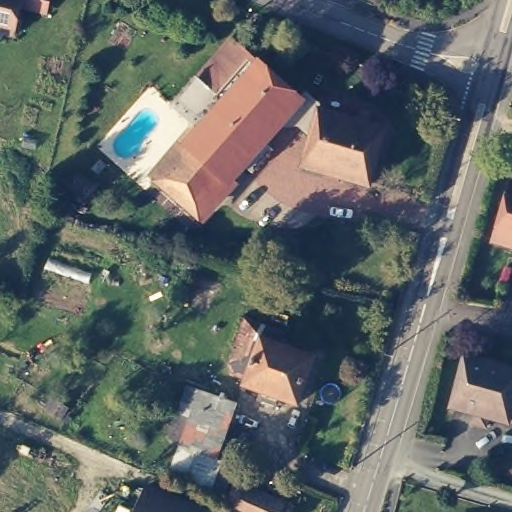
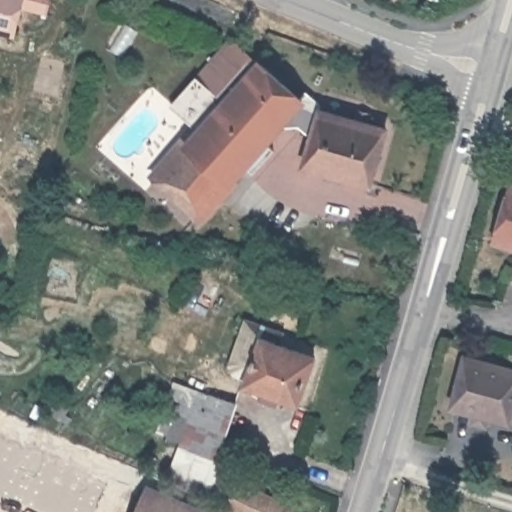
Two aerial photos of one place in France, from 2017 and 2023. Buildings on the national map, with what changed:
unchanged [(16,31),(0,26),(0,0),(24,0),(16,31)]
unchanged [(180,113),(238,45),(307,102),(311,97),(322,104),(308,128),(296,116),(205,221),(163,184),(203,135),(180,113)]
unchanged [(306,142),(308,128),(322,104),(323,105),(322,114),(359,126),(362,118),(372,121),(369,130),(388,136),(372,190),(306,172),(314,144),(306,142)]
unchanged [(487,251),(505,191),(512,192),(512,258),(487,251)]
unchanged [(318,348),(303,395),(248,376),(263,330),(318,348)]
unchanged [(512,366),(512,416),(509,416),(508,418),(491,414),(487,425),(472,421),(475,410),(452,403),(467,355),(512,366)]
unchanged [(220,466),(177,452),(181,439),(172,434),(188,385),(239,402),(220,466)]
unchanged [(294,512),(248,512),(228,503),(238,480),(297,506),(294,512)]
unchanged [(138,512),(145,497),(148,490),(199,512),(138,512)]

